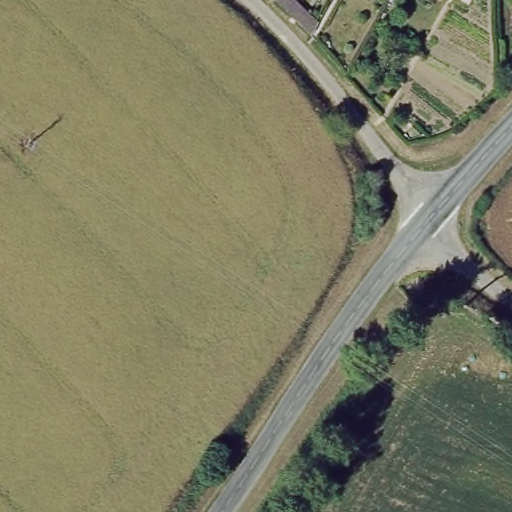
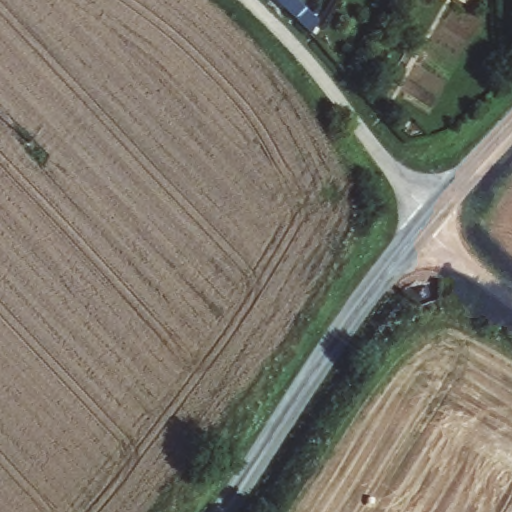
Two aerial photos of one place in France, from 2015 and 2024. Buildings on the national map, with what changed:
unchanged [(274,0),(293,0),(317,23),(310,35),(274,0)]

